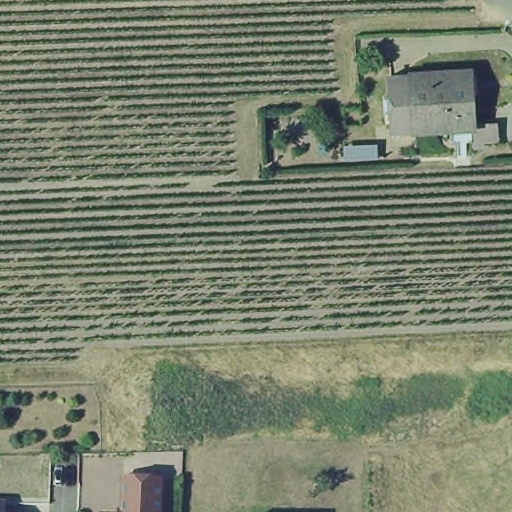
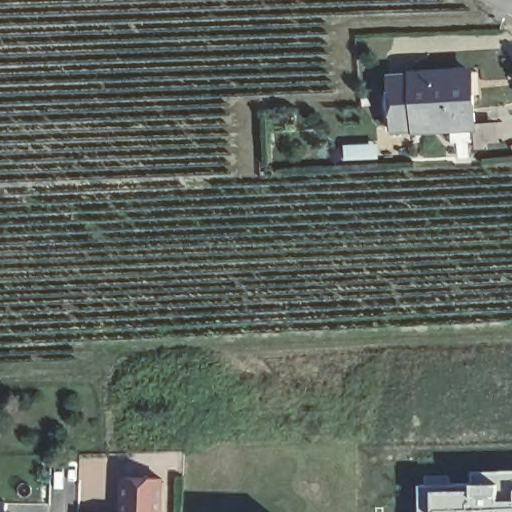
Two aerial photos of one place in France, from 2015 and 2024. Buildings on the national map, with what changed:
unchanged [(450,139),(448,123),(414,125),(412,71),(469,68),(472,122),(470,122),(471,138),(450,139)]
unchanged [(414,125),(390,126),(388,73),(412,71),(414,125)]
new [(451,484),(472,484),(473,472),(512,471),(512,512),(419,512),(418,485),(425,485),(426,476),(451,477),(451,484)]
unchanged [(166,478),(164,512),(126,512),(128,476),(166,478)]
unchanged [(4,512),(0,512),(0,502),(5,503),(4,512)]

